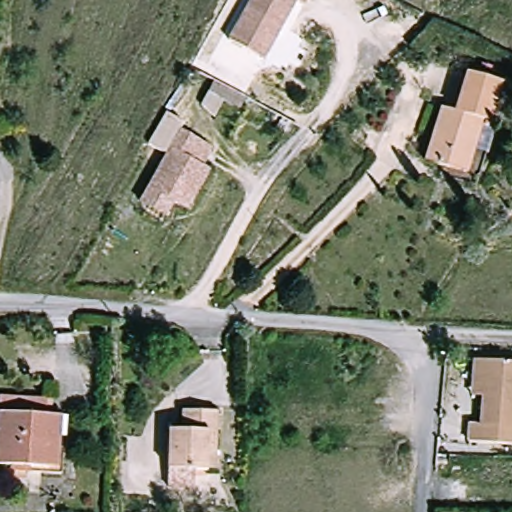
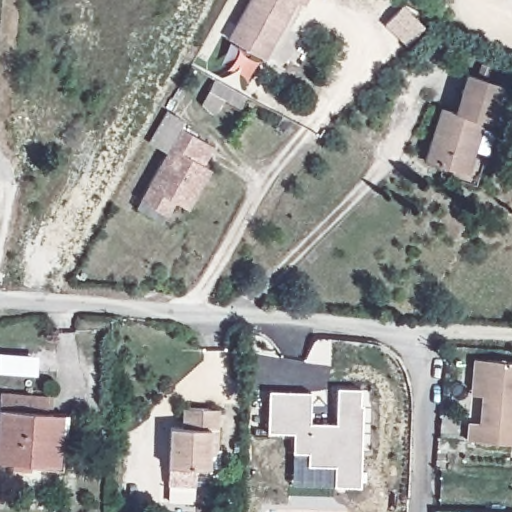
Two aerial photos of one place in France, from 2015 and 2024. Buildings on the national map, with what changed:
unchanged [(237,35),(257,0),(314,0),(310,7),(302,3),(281,38),(269,56),(257,49),(237,35)]
unchanged [(505,86),(489,133),(483,131),(469,175),(428,163),(444,111),(453,111),(458,95),(466,73),(505,86)]
unchanged [(146,214),(156,194),(174,162),(156,152),(174,121),(191,131),(187,138),(220,156),(209,176),(215,179),(194,215),(182,209),(171,229),(146,214)]
unchanged [(473,418),(485,419),(488,393),(477,392),(481,359),(493,359),(512,361),(512,445),(471,440),(473,418)]
unchanged [(49,410),(70,411),(67,474),(16,471),(17,456),(0,455),(0,448),(5,389),(50,392),(49,410)]
new [(335,487),(335,466),(309,466),(310,453),(293,453),(294,433),(268,433),(270,392),(311,393),(310,423),(336,424),(337,389),(360,389),(360,405),(362,406),(360,487),(335,487)]
unchanged [(166,471),(171,428),(187,428),(186,407),(225,410),(223,429),(211,429),(213,472),(166,471)]

